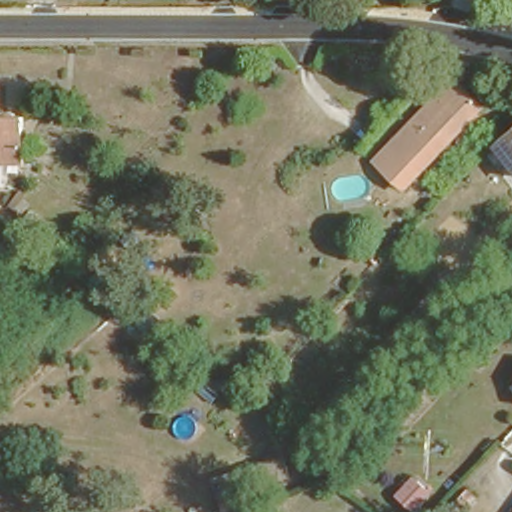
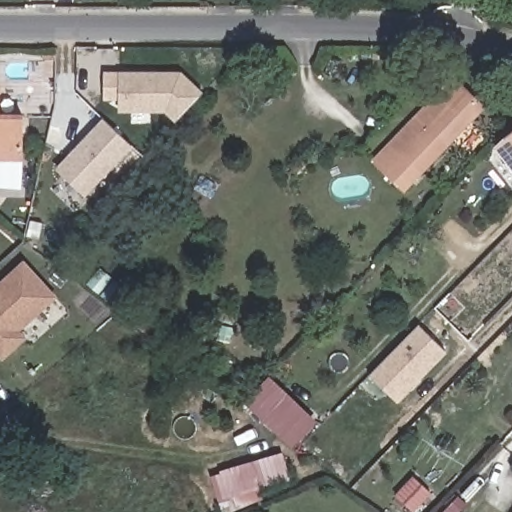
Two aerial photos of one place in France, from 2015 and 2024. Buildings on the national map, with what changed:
new [(165,112),(118,112),(118,100),(104,100),(104,72),(181,71),(202,92),(174,121),(165,112)]
unchanged [(377,153),(457,75),(485,104),(405,180),(377,153)]
unchanged [(8,133),(15,134),(14,155),(0,155),(0,79),(10,79),(8,133)]
new [(102,119),(132,147),(85,197),(55,169),(102,119)]
unchanged [(512,152),(502,141),(512,132),(512,152)]
new [(25,261),(57,297),(17,330),(26,338),(2,362),(0,360),(0,283),(25,261)]
new [(397,403),(370,375),(419,325),(447,352),(397,403)]
new [(244,403),(268,376),(318,421),(292,449),(244,403)]
unchanged [(290,481),(251,493),(255,504),(228,512),(221,512),(211,477),(281,455),(290,481)]
unchanged [(300,465),(311,455),(320,463),(308,475),(300,465)]
unchanged [(420,512),(409,512),(394,497),(413,476),(435,499),(420,512)]

